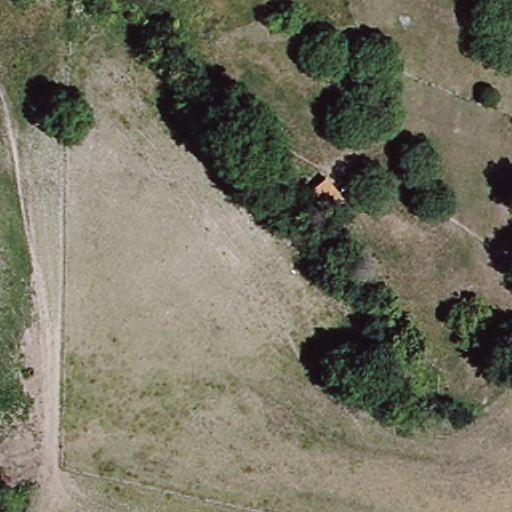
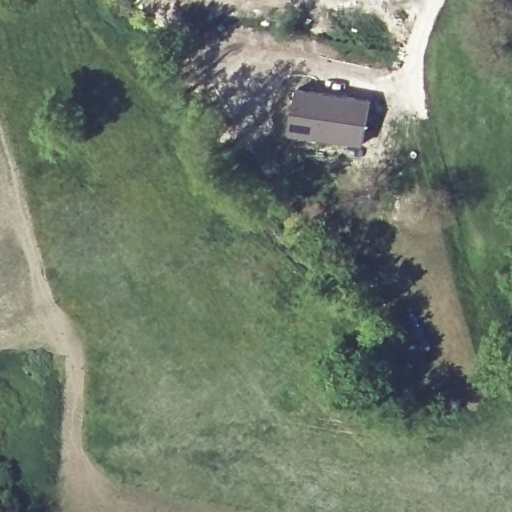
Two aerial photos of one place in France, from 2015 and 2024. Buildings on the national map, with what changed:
new [(297,87),(372,99),(363,145),(290,132),(297,87)]

